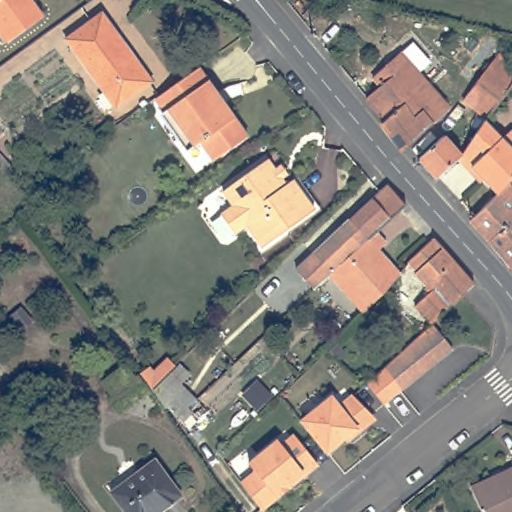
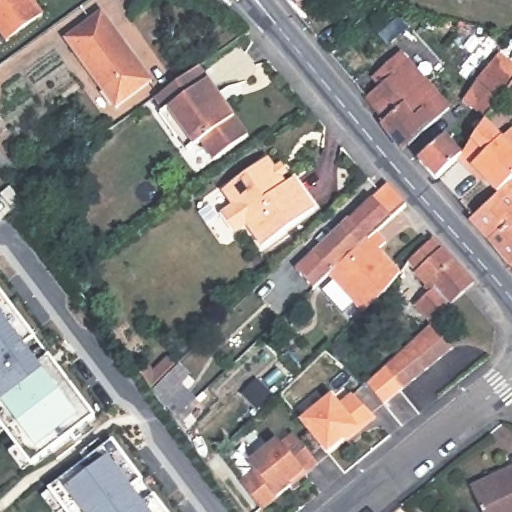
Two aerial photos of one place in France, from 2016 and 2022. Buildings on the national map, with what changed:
unchanged [(47,15),(12,41),(0,24),(0,0),(37,0),(47,15)]
unchanged [(70,39),(106,13),(156,82),(120,107),(70,39)]
unchanged [(406,151),(384,126),(390,120),(371,98),(385,86),(377,77),(404,53),(454,109),(406,151)]
unchanged [(468,100),(496,65),(504,54),(512,60),(512,89),(490,117),(468,100)]
unchanged [(208,160),(195,142),(182,151),(175,142),(173,124),(162,109),(156,108),(149,99),(193,67),(212,94),(219,104),(242,136),(208,160)]
unchanged [(462,159),(443,177),(441,178),(424,158),(449,136),(466,155),(489,121),(507,140),(512,135),(512,185),(502,195),(488,179),(484,182),(473,171),(462,159)]
unchanged [(0,141),(0,133),(4,137),(0,141)]
unchanged [(9,174),(0,164),(0,150),(16,168),(9,174)]
unchanged [(297,185),(319,216),(267,252),(251,230),(239,239),(225,219),(237,210),(227,196),(272,164),(279,175),(286,170),(292,178),(285,183),(290,190),(297,185)]
unchanged [(328,275),(319,283),(313,289),(295,270),(312,254),(386,184),(404,205),(396,212),(375,231),(330,273),(328,275)]
unchanged [(474,222),(478,218),(502,195),(512,185),(512,264),(474,222)]
unchanged [(386,242),(379,250),(399,273),(362,313),(328,275),(330,273),(375,231),(386,242)]
unchanged [(419,312),(435,297),(419,278),(420,277),(412,267),(437,243),(478,290),(468,298),(435,329),(419,312)]
new [(30,467),(0,427),(0,289),(97,417),(30,467)]
unchanged [(386,374),(435,329),(456,355),(404,396),(380,416),(363,396),(367,392),(386,374)]
unchanged [(149,365),(153,370),(166,356),(176,366),(180,363),(190,375),(180,383),(170,372),(152,390),(139,374),(149,365)]
unchanged [(184,408),(176,415),(166,405),(164,407),(152,390),(170,372),(196,400),(192,403),(185,410),(184,408)]
demolished [(147,390),(117,412),(107,399),(111,396),(133,379),(137,377),(147,390)]
unchanged [(316,438),(307,427),(336,403),(344,412),(352,406),(356,402),(378,425),(357,442),(355,439),(332,457),(316,438)]
new [(0,434),(0,426),(3,431),(0,434)]
unchanged [(247,493),(240,485),(255,472),(248,465),(277,441),(281,446),(293,436),(300,444),(316,465),(303,475),(301,472),(288,483),(290,486),(260,510),(247,493)]
new [(66,512),(49,488),(113,440),(167,512),(66,512)]
demolished [(186,496),(164,512),(129,512),(115,493),(159,460),(186,496)]
unchanged [(487,512),(478,492),(475,487),(500,476),(512,470),(512,512),(487,512)]

